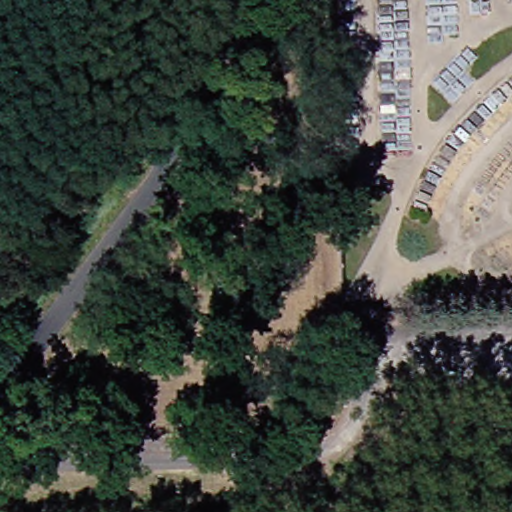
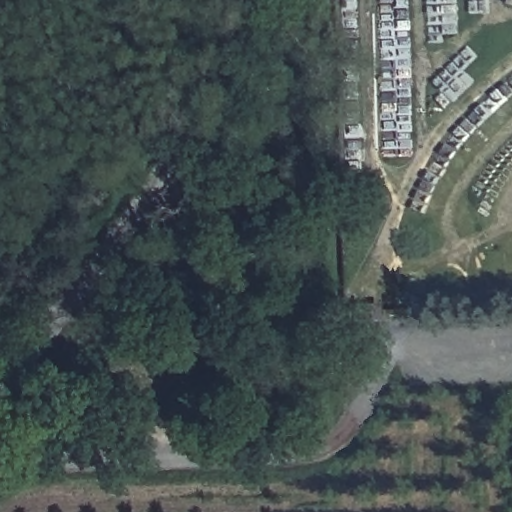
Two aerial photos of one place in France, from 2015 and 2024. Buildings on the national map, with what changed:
unchanged [(342,240),(342,219),(354,219),(354,239),(342,240)]
unchanged [(351,334),(349,333),(348,330),(348,326),(348,318),(370,317),(371,326),(371,334),(351,334)]

